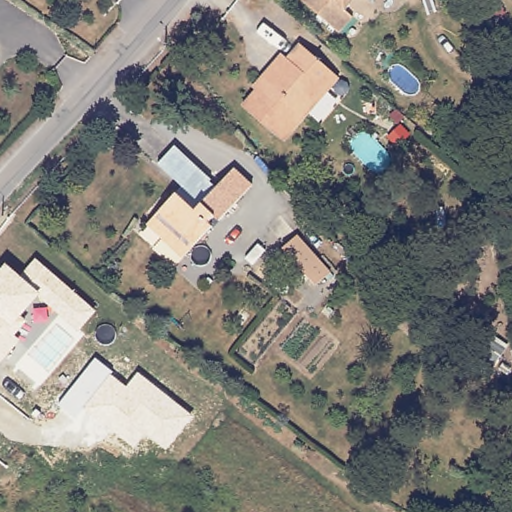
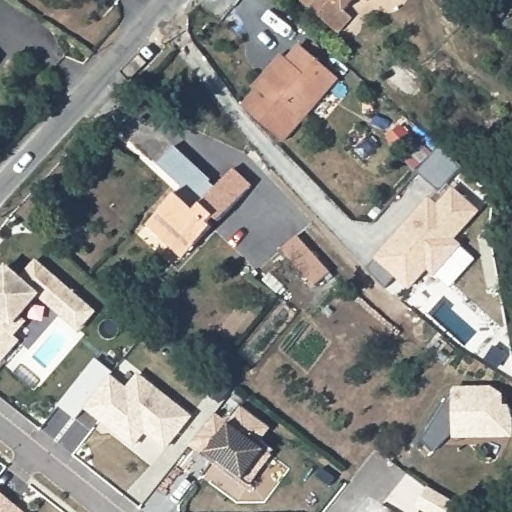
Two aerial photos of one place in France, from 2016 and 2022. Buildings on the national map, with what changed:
unchanged [(351,14),(339,28),(308,0),(351,0),(344,7),(351,14)]
unchanged [(287,62),(299,48),(336,81),(281,144),(242,108),(255,92),(253,90),(270,71),(282,58),(287,62)]
unchanged [(159,236),(144,223),(174,189),(180,184),(156,161),(172,143),(210,178),(209,179),(214,184),(231,165),(250,183),(218,218),(213,214),(207,220),(209,223),(186,249),(180,255),(159,236)]
new [(373,259),(372,258),(428,195),(430,197),(436,190),(415,172),(439,145),(461,165),(447,180),(452,185),(479,211),(455,238),(462,244),(433,277),(426,271),(410,291),(394,277),(384,287),(365,268),(373,259)]
new [(299,234),(333,271),(319,284),(285,248),(299,234)]
demolished [(289,243),(322,279),(308,292),(274,255),(289,243)]
unchanged [(79,329),(39,298),(22,315),(26,320),(15,334),(22,340),(0,366),(0,274),(8,264),(19,274),(36,257),(98,309),(79,329)]
unchanged [(95,357),(113,371),(111,373),(127,384),(136,372),(193,414),(168,449),(145,433),(134,447),(83,407),(78,416),(58,403),(95,357)]
new [(451,392),(459,392),(459,389),(493,388),(501,394),(501,406),(508,406),(511,414),(511,431),(507,436),(491,436),(487,432),(454,432),(438,447),(425,434),(451,392)]
new [(203,455),(190,446),(215,414),(228,423),(240,406),(270,428),(257,444),(272,455),(250,484),(214,458),(211,462),(203,455)]
new [(428,489),(456,505),(453,512),(429,512),(418,506),(428,489)]
new [(0,492),(24,512),(0,512),(0,492)]

